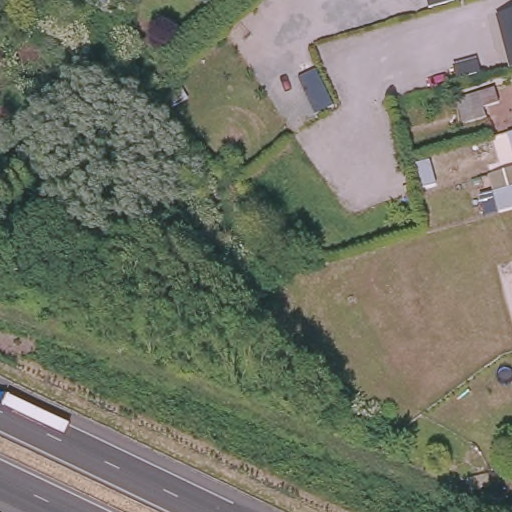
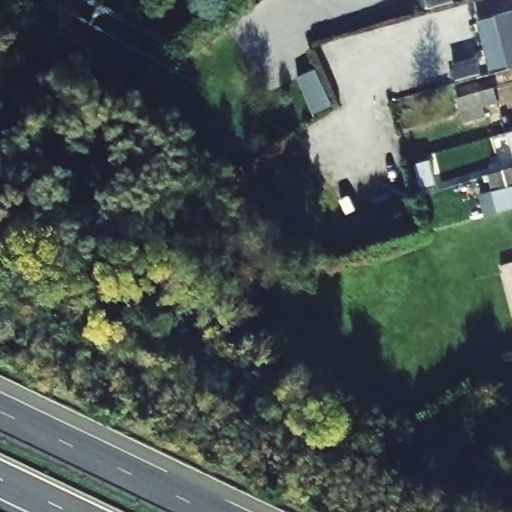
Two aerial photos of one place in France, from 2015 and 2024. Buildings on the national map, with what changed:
unchanged [(425,5),(423,0),(442,0),(425,5)]
unchanged [(495,12),(512,7),(512,65),(510,65),(495,12)]
unchanged [(477,71),(454,79),(450,65),(473,58),(477,71)]
unchanged [(498,101),(484,105),(487,116),(463,122),(456,99),(494,87),(498,101)]
unchanged [(490,191),(501,187),(512,185),(512,208),(495,213),(490,191)]

